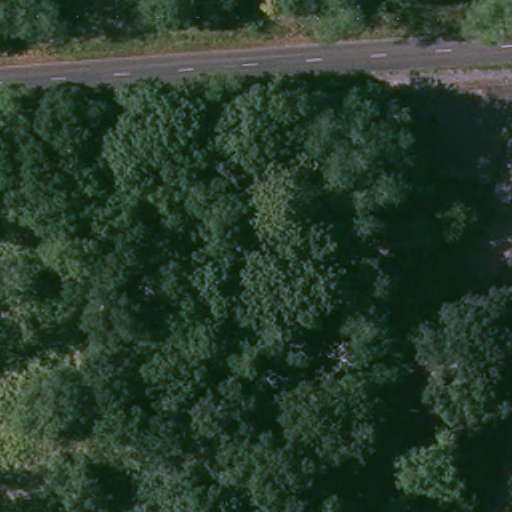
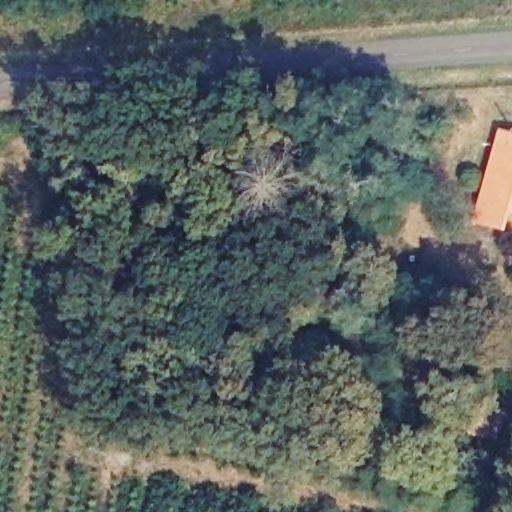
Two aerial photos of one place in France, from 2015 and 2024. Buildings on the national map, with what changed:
new [(501,131),(512,135),(512,197),(504,228),(475,221),(501,131)]
demolished [(512,165),(512,196),(504,194),(512,165)]

